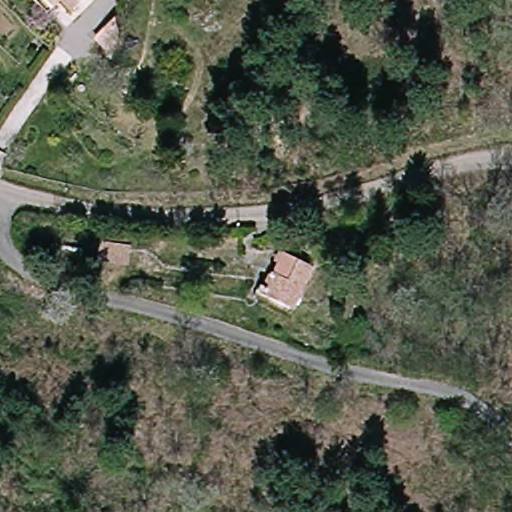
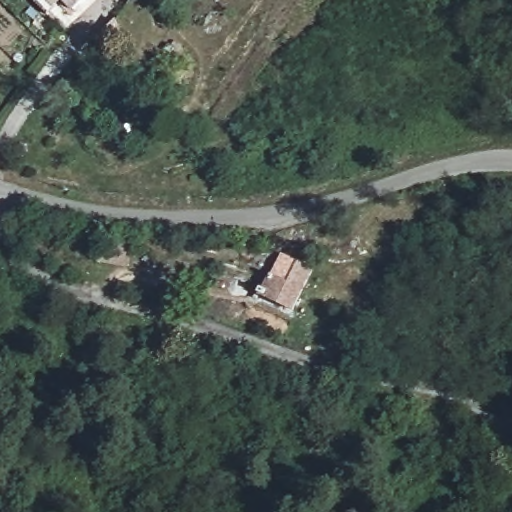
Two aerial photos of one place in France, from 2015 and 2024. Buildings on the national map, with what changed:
unchanged [(45,22),(26,0),(58,0),(62,5),(45,22)]
unchanged [(62,5),(58,0),(95,0),(75,20),(62,5)]
unchanged [(132,241),(132,265),(102,263),(99,238),(132,241)]
unchanged [(275,246),(317,257),(306,312),(260,299),(275,246)]

